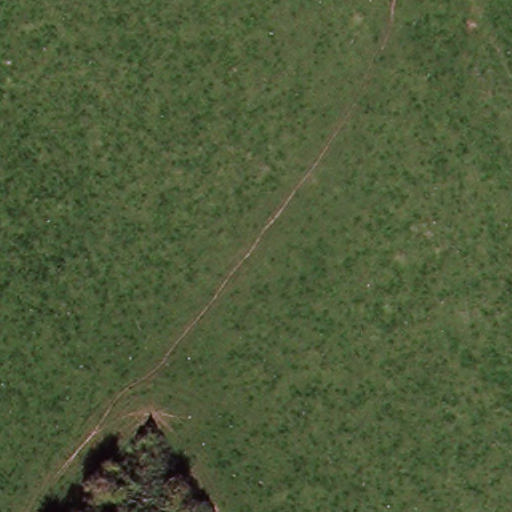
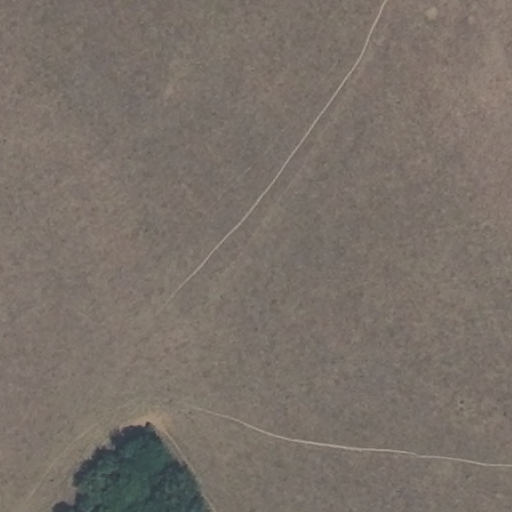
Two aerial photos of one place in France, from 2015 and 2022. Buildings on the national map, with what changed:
[]

